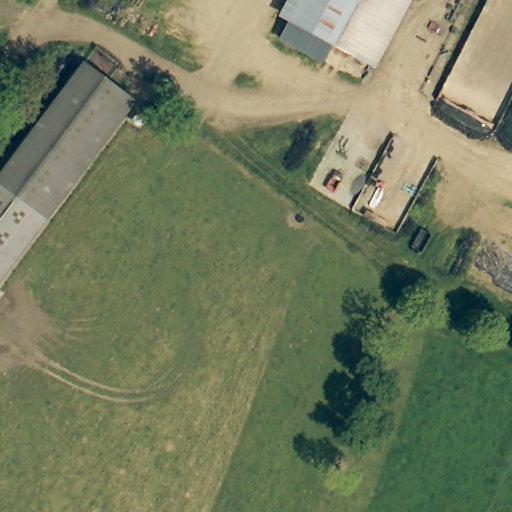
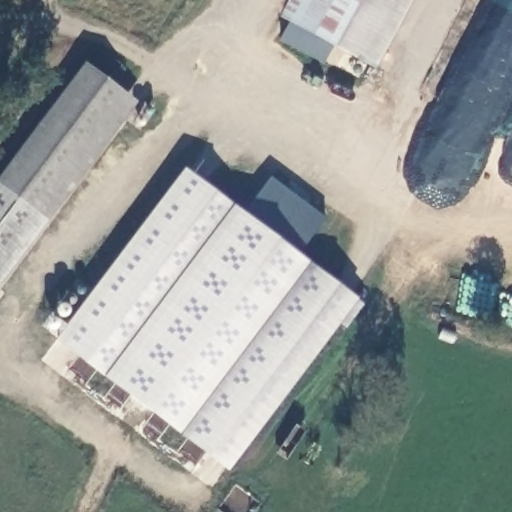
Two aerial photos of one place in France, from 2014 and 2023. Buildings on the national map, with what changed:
unchanged [(335,49),(290,24),(302,0),(355,0),(360,3),(335,49)]
unchanged [(335,49),(360,3),(355,0),(407,0),(373,69),(335,49)]
unchanged [(0,167),(80,64),(134,99),(48,222),(6,198),(0,195),(0,167)]
new [(183,166),(245,212),(271,175),(326,217),(299,254),(358,297),(230,471),(53,339),(183,166)]
unchanged [(0,281),(0,195),(6,198),(48,222),(11,288),(0,281)]

